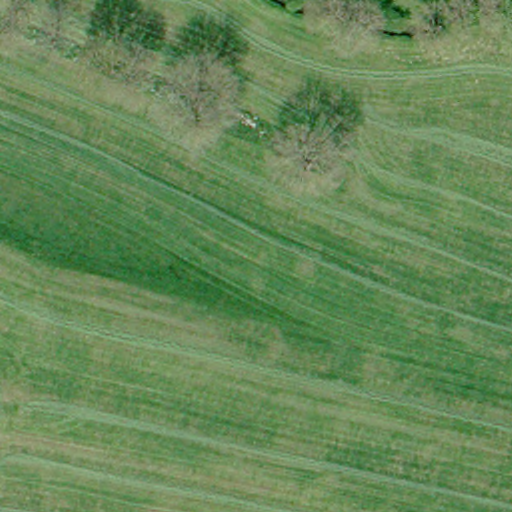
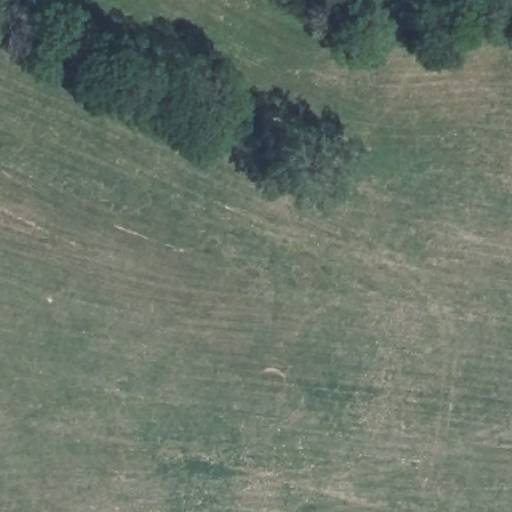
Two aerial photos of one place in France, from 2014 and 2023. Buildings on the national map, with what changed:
[]

